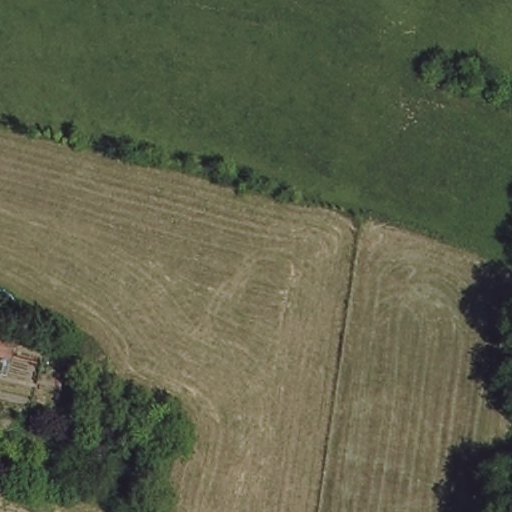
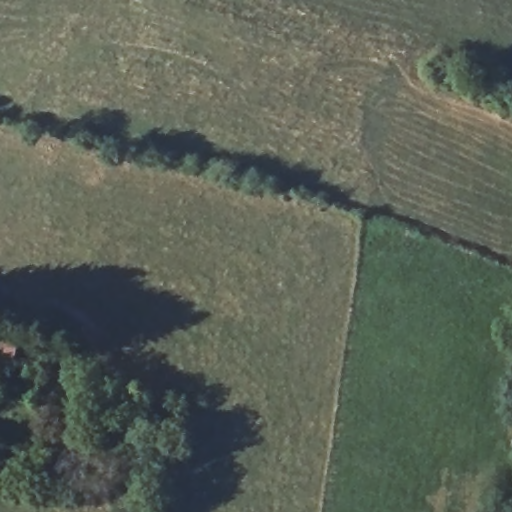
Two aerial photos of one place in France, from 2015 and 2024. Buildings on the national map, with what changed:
unchanged [(20,341),(18,358),(18,361),(0,357),(0,337),(20,341)]

